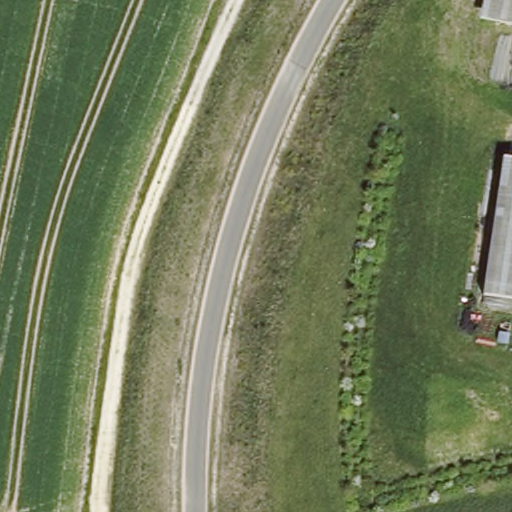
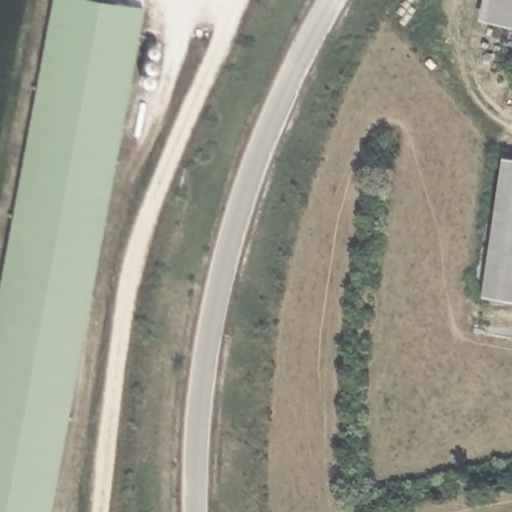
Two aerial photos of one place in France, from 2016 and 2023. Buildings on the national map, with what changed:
new [(145,8),(51,512),(0,512),(0,282),(52,0),(101,0),(145,8)]
unchanged [(491,0),(512,0),(512,29),(487,24),(491,0)]
unchanged [(512,301),(482,296),(504,157),(512,158),(512,301)]

